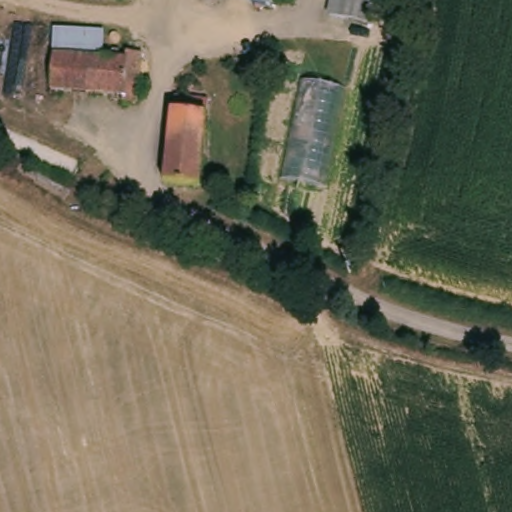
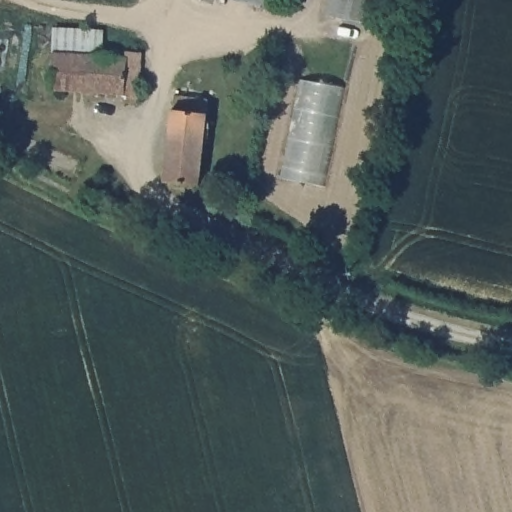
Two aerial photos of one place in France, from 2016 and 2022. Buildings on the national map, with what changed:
unchanged [(94,0),(128,0),(126,7),(94,0)]
unchanged [(265,0),(261,10),(230,0),(265,0)]
unchanged [(327,13),(330,0),(377,0),(372,24),(327,13)]
unchanged [(49,47),(123,61),(123,51),(142,55),(132,105),(115,102),(115,93),(44,81),(49,47)]
unchanged [(320,187),(280,181),(301,79),(341,87),(320,187)]
unchanged [(160,191),(178,103),(213,110),(196,196),(160,191)]

